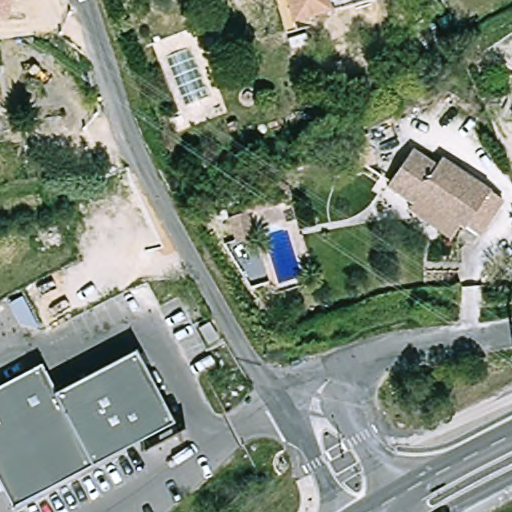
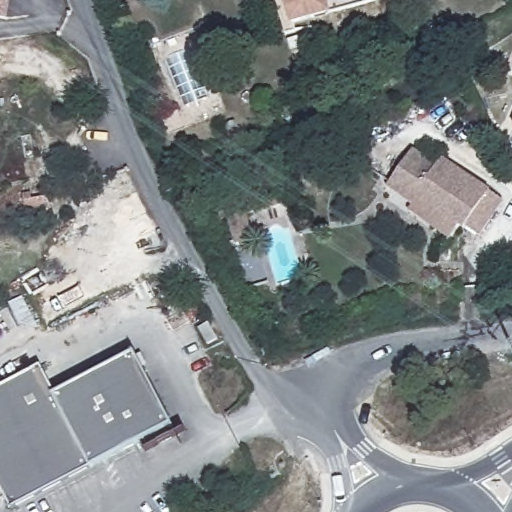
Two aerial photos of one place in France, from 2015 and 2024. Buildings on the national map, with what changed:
unchanged [(9,17),(0,15),(0,0),(11,0),(9,17)]
unchanged [(334,9),(298,19),(300,29),(290,31),(281,0),(331,0),(334,9)]
unchanged [(454,28),(441,35),(435,24),(447,17),(454,28)]
unchanged [(1,104),(0,104),(0,101),(1,104)]
unchanged [(348,171),(342,144),(366,138),(373,165),(348,171)]
unchanged [(508,200),(485,234),(470,224),(469,227),(464,224),(455,236),(413,208),(417,202),(391,184),(415,148),(440,165),(445,157),(508,200)]
unchanged [(298,202),(245,216),(239,187),(290,174),(298,202)]
unchanged [(14,387),(47,370),(61,398),(142,356),(185,440),(156,455),(150,446),(22,512),(15,512),(7,497),(0,501),(0,394),(14,387)]

